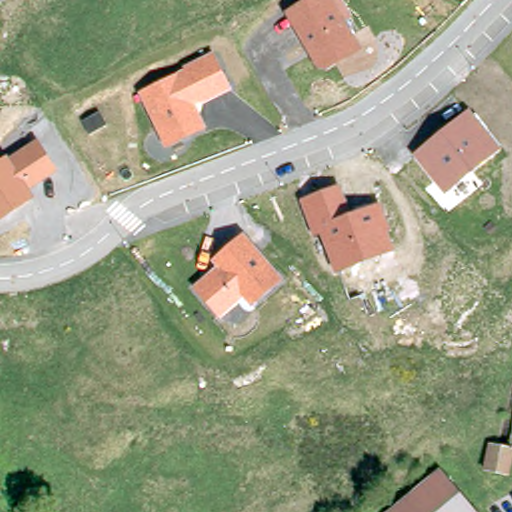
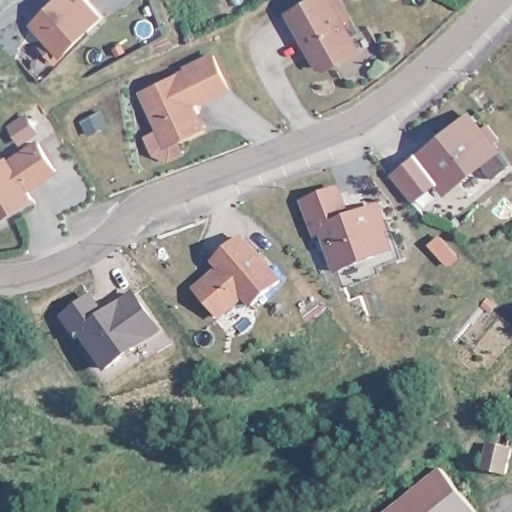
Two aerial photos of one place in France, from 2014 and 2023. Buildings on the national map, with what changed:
new [(106,18),(65,57),(57,64),(40,44),(44,38),(32,24),(57,0),(78,0),(79,1),(79,0),(89,0),(106,18)]
unchanged [(352,18),(345,23),(353,37),(355,36),(363,51),(329,71),(318,70),(285,13),(306,0),(343,0),(352,18)]
unchanged [(232,91),(197,108),(207,129),(165,148),(137,92),(183,68),(182,66),(214,52),(232,91)]
unchanged [(470,111),(501,149),(446,196),(413,157),(470,111)]
unchanged [(31,190),(37,199),(0,222),(0,161),(7,156),(38,140),(58,174),(31,190)]
unchanged [(301,200),(341,185),(353,214),(382,205),(391,232),(389,232),(397,252),(337,274),(321,236),(315,238),(301,200)]
unchanged [(217,267),(212,261),(244,234),(285,281),(254,308),(245,299),(220,321),(194,288),(217,267)]
new [(93,301),(107,321),(136,299),(162,336),(110,374),(84,338),(80,341),(65,321),(93,301)]
unchanged [(483,474),(487,448),(497,449),(511,451),(507,478),(483,474)]
unchanged [(478,512),(397,512),(445,473),(478,512)]

